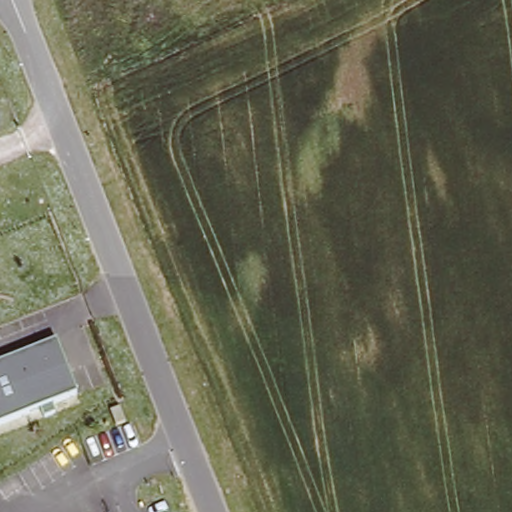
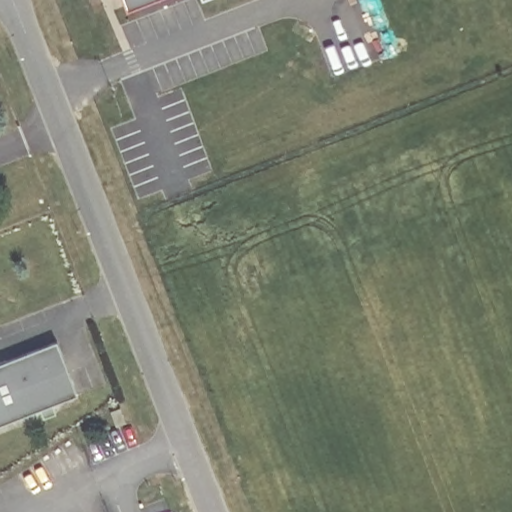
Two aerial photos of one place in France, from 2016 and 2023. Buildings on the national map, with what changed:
new [(124,0),(169,0),(130,15),(124,0)]
new [(206,0),(209,0),(206,1),(206,0)]
unchanged [(79,394),(0,422),(0,362),(57,340),(79,394)]
unchanged [(128,421),(120,424),(115,414),(124,411),(128,421)]

